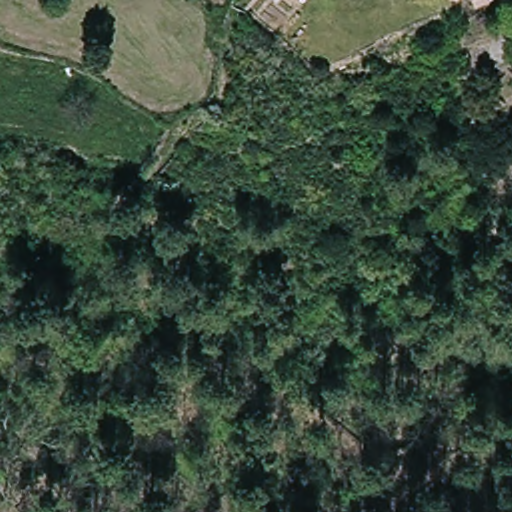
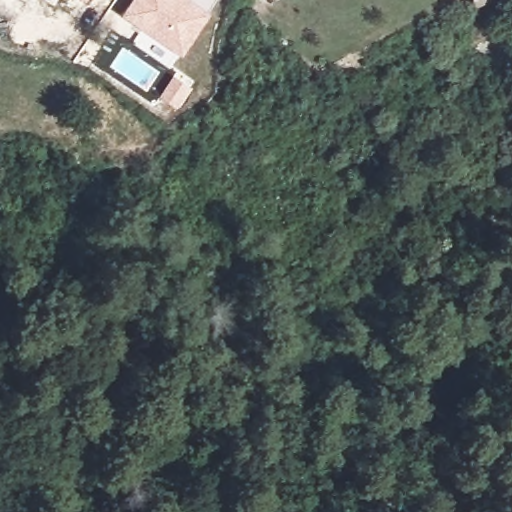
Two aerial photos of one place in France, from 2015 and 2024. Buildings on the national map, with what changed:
new [(87,0),(86,1),(84,0),(87,0)]
new [(211,15),(181,57),(121,16),(132,0),(216,0),(208,13),(211,15)]

